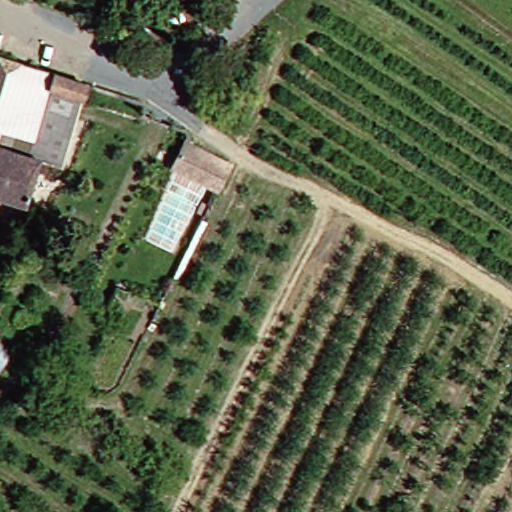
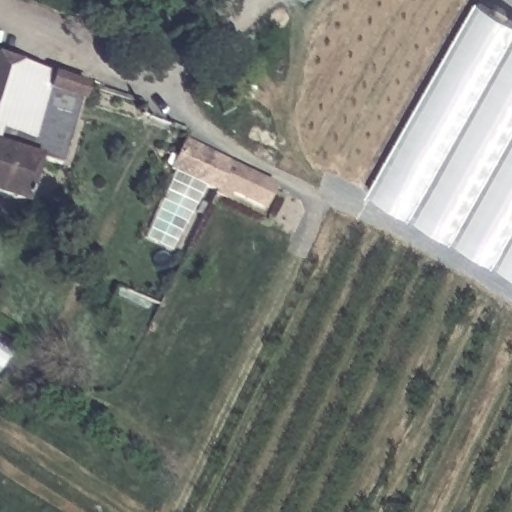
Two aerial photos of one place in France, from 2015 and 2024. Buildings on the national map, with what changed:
new [(512,19),(512,271),(374,193),(480,1),(512,19)]
unchanged [(76,85),(52,165),(29,160),(14,204),(0,200),(0,60),(76,85)]
unchanged [(218,192),(170,171),(182,142),(231,163),(218,192)]

